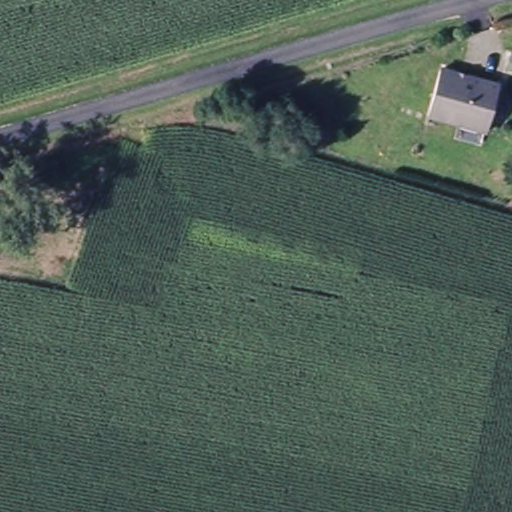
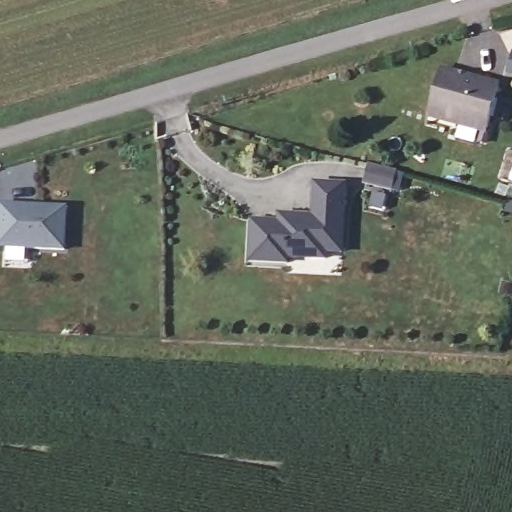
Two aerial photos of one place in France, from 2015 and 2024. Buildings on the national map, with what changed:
unchanged [(441,70),(502,86),(490,133),(429,117),(441,70)]
new [(370,170),(402,178),(398,195),(366,187),(370,170)]
new [(276,219),(276,213),(311,214),(312,182),(345,182),(344,252),(325,252),(325,259),(287,257),(287,265),(247,262),(251,219),(276,219)]
new [(1,208),(28,209),(28,213),(34,213),(34,210),(67,211),(65,254),(0,251),(0,229),(1,208)]

